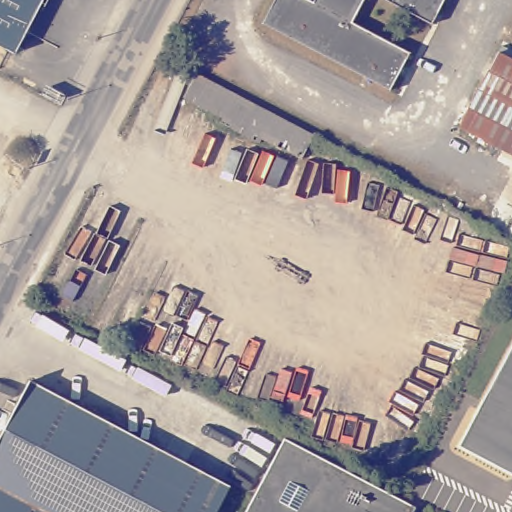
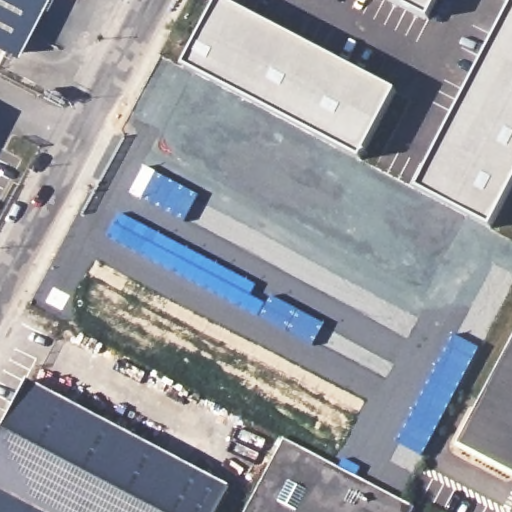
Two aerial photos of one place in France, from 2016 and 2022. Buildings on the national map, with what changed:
unchanged [(18,54),(0,45),(0,0),(47,0),(18,54)]
new [(217,0),(222,0),(396,90),(362,160),(313,137),(196,75),(182,67),(217,0)]
demolished [(267,20),(278,0),(367,0),(356,20),(412,50),(394,86),(267,20)]
new [(428,19),(392,0),(438,0),(428,19)]
demolished [(435,21),(394,0),(446,0),(435,21)]
new [(512,186),(491,227),(416,189),(512,4),(512,186)]
demolished [(498,55),(512,63),(512,155),(460,127),(498,55)]
unchanged [(301,158),(264,137),(260,144),(220,123),(224,117),(185,96),(196,75),(313,137),(301,158)]
unchanged [(512,347),(512,473),(460,445),(512,347)]
unchanged [(0,512),(0,446),(35,381),(166,450),(177,430),(202,443),(191,463),(234,486),(220,512),(0,512)]
unchanged [(400,500),(416,508),(415,512),(245,512),(283,440),(285,436),(400,500)]

